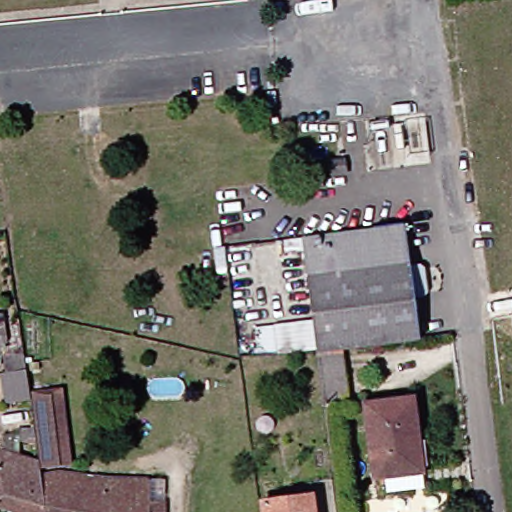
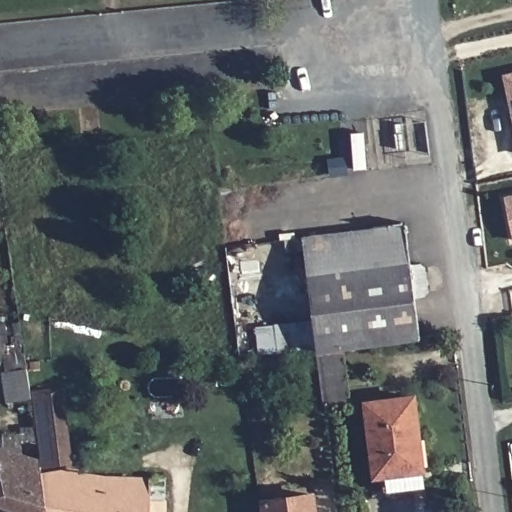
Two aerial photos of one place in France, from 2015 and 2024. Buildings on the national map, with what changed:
new [(512,74),(512,111),(505,76),(512,74)]
new [(512,196),(512,237),(504,197),(512,196)]
unchanged [(415,223),(417,268),(433,267),(436,297),(423,298),(430,343),(350,351),(358,402),(335,405),(326,354),(309,237),(415,223)]
unchanged [(34,398),(11,401),(7,372),(10,372),(9,357),(28,355),(34,398)]
unchanged [(47,468),(37,391),(54,388),(65,387),(72,447),(75,465),(47,468)]
unchanged [(432,476),(385,482),(376,410),(422,404),(432,476)]
unchanged [(18,512),(0,506),(0,474),(5,448),(7,449),(8,435),(25,436),(24,455),(43,460),(45,475),(50,512),(18,512)]
unchanged [(50,512),(45,475),(63,472),(70,472),(91,474),(98,475),(115,477),(155,478),(170,478),(169,512),(50,512)]
unchanged [(274,512),(272,502),(322,496),(324,512),(274,512)]

